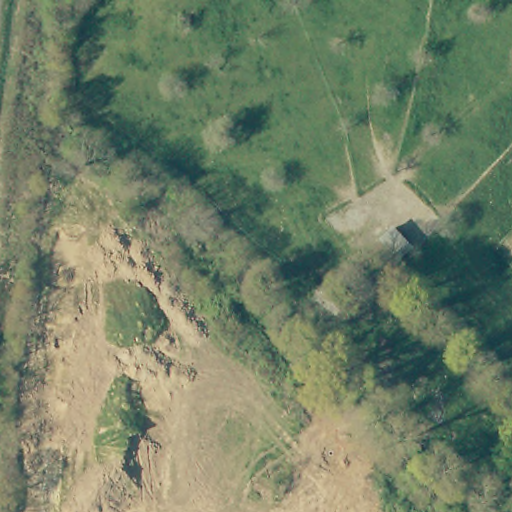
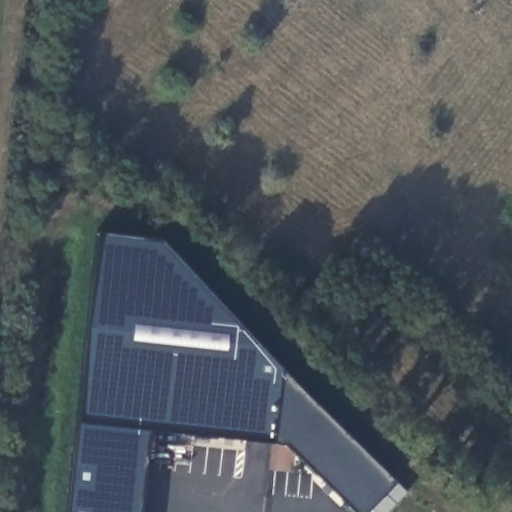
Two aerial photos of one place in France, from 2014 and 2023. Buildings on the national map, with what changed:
new [(363,512),(354,512),(284,442),(76,421),(97,230),(160,237),(395,481),(363,512)]

